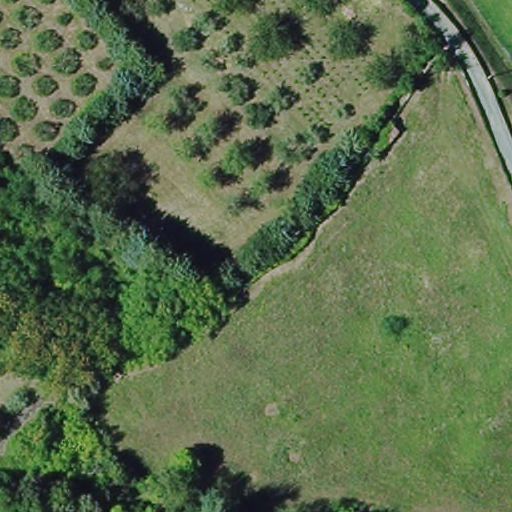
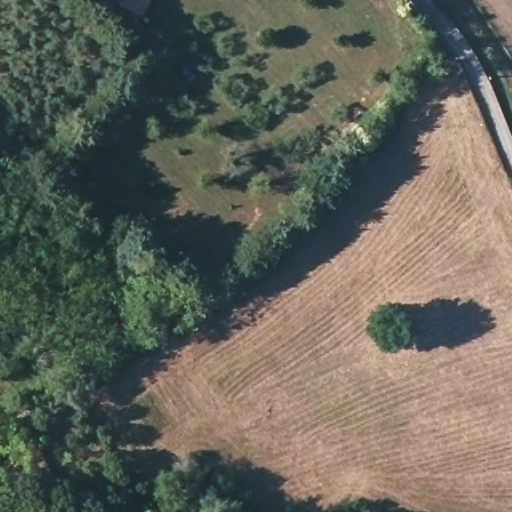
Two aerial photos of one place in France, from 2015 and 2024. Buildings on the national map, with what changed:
new [(151,0),(142,16),(113,0),(151,0)]

